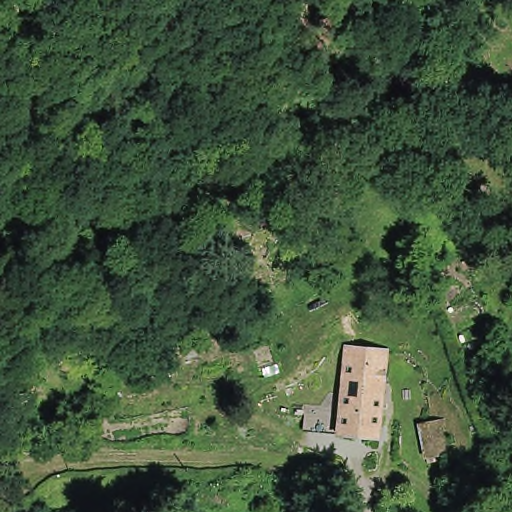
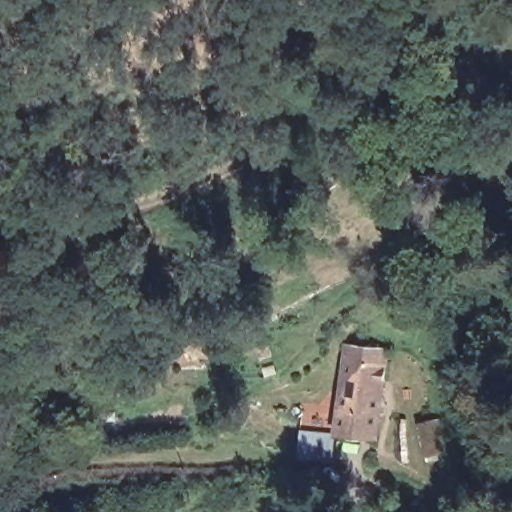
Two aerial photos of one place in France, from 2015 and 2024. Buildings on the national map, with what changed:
unchanged [(346,352),(387,357),(382,401),(342,397),(346,352)]
unchanged [(378,444),(337,441),(342,397),(382,401),(378,444)]

